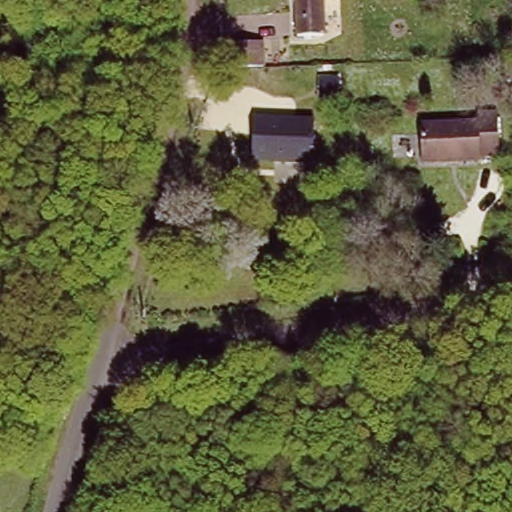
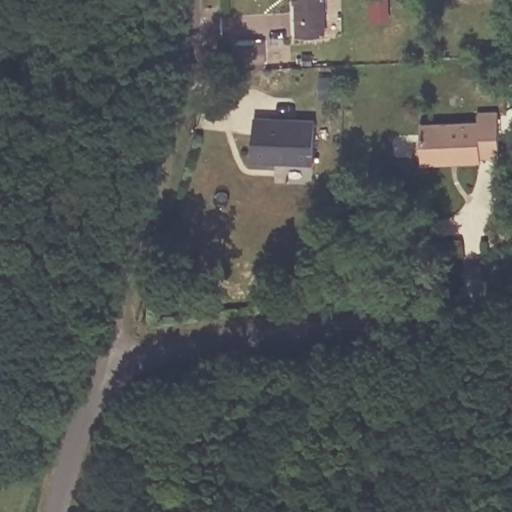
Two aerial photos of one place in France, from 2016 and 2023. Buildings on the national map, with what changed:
unchanged [(330,31),(300,32),(300,0),(329,0),(330,31)]
unchanged [(259,79),(224,81),(222,54),(257,52),(259,79)]
unchanged [(479,118),(479,107),(499,107),(500,152),(482,152),(482,157),(423,157),(421,121),(479,118)]
unchanged [(312,154),(248,152),(249,110),(314,111),(312,154)]

